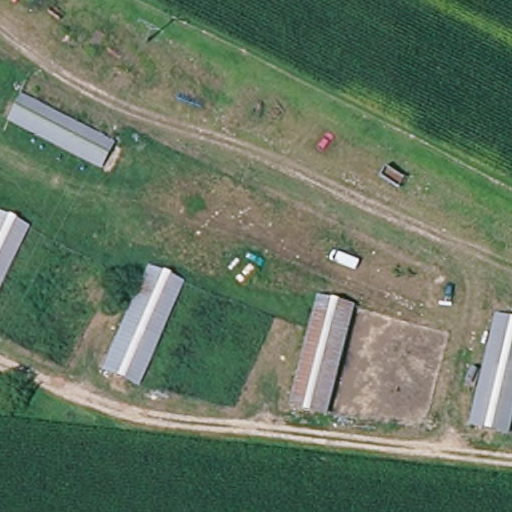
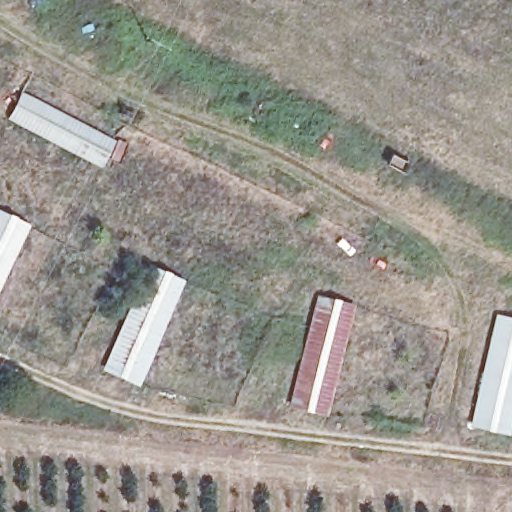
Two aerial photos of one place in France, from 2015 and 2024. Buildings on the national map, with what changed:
unchanged [(8,118),(22,90),(116,136),(101,166),(8,118)]
unchanged [(0,210),(22,219),(0,275),(0,210)]
unchanged [(139,382),(111,372),(152,265),(180,276),(139,382)]
unchanged [(330,412),(299,407),(317,295),(349,300),(330,412)]
unchanged [(480,424),(502,311),(512,314),(512,430),(480,424)]

